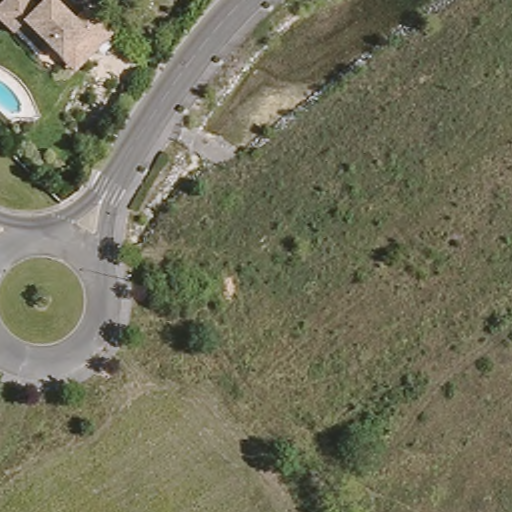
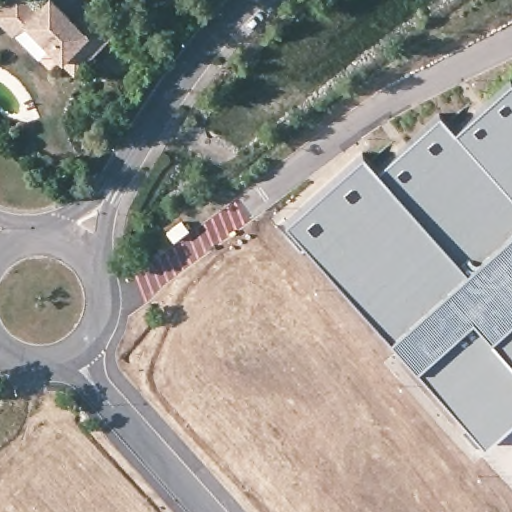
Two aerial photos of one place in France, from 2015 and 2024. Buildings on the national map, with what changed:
unchanged [(29,32),(18,44),(0,26),(0,22),(21,0),(47,0),(54,7),(79,31),(91,19),(116,44),(92,69),(79,82),(67,70),(29,32)]
new [(286,222),(362,153),(376,169),(441,112),(456,129),(511,80),(512,81),(512,421),(484,445),(286,222)]
new [(181,223),(185,230),(173,239),(168,232),(181,223)]

